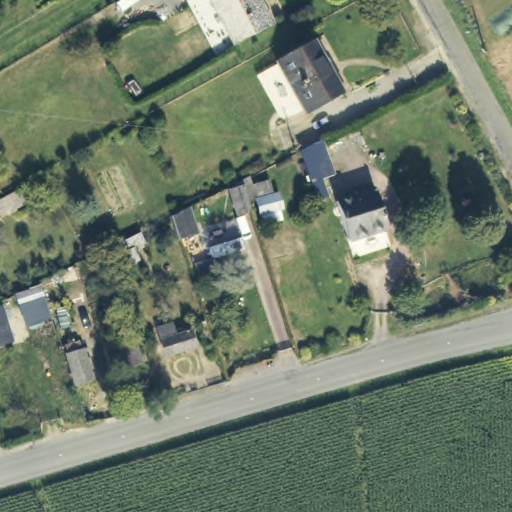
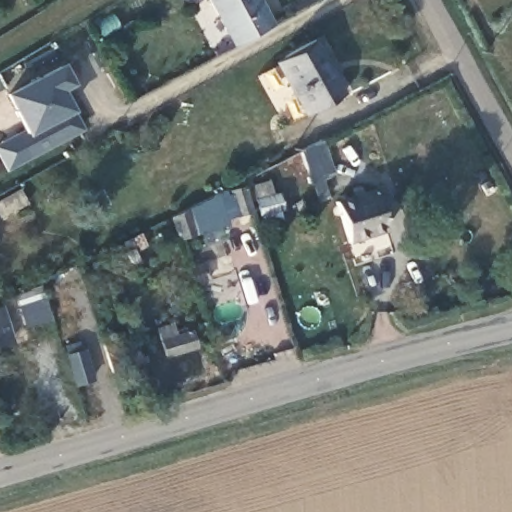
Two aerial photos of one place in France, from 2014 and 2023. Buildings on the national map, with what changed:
unchanged [(183,2),(182,0),(188,0),(183,2)]
unchanged [(205,0),(263,0),(276,22),(232,46),(205,0)]
unchanged [(275,59),(315,37),(343,91),(303,112),(275,59)]
new [(26,130),(6,92),(63,63),(75,85),(64,91),(74,109),(85,130),(7,172),(0,160),(0,142),(26,130)]
unchanged [(349,172),(337,178),(343,196),(331,200),(316,149),(337,139),(349,172)]
unchanged [(388,188),(400,229),(363,242),(349,201),(388,188)]
unchanged [(284,209),(288,207),(293,222),(266,232),(262,217),(258,218),(260,225),(244,230),(236,206),(245,202),(243,197),(251,193),(254,202),(280,194),(284,209)]
unchanged [(207,247),(187,254),(179,227),(198,219),(207,247)]
unchanged [(152,256),(132,263),(127,253),(132,251),(148,243),(152,256)]
unchanged [(8,325),(12,336),(0,338),(0,326),(8,325)]
unchanged [(173,336),(176,344),(181,343),(183,348),(197,343),(203,358),(170,368),(160,340),(173,336)]
unchanged [(108,355),(128,348),(132,358),(142,355),(148,375),(118,384),(111,366),(108,355)]
unchanged [(81,397),(71,367),(68,357),(85,351),(88,361),(98,392),(81,397)]

